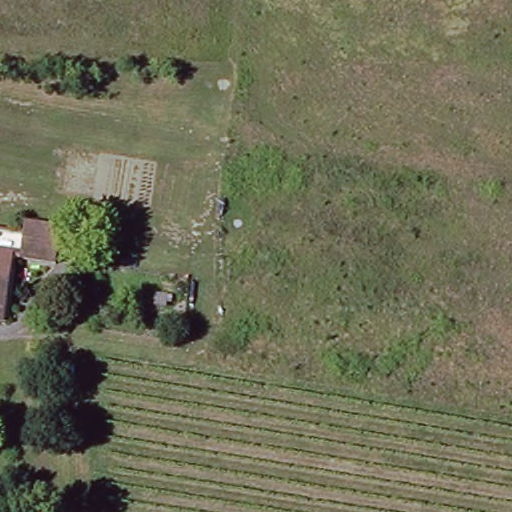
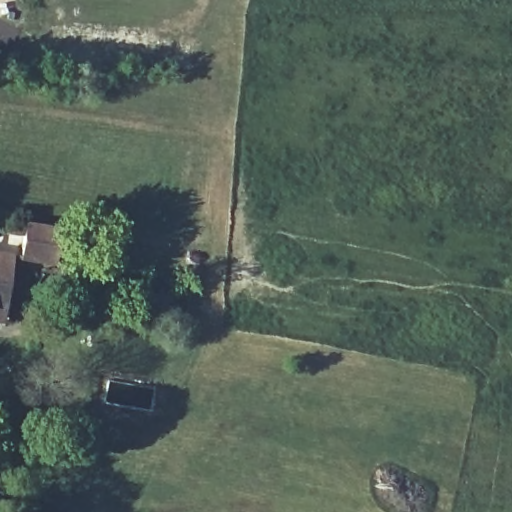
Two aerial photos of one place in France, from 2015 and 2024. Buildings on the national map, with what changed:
unchanged [(11,259),(2,316),(0,316),(0,234),(24,237),(26,222),(60,229),(55,265),(11,259)]

